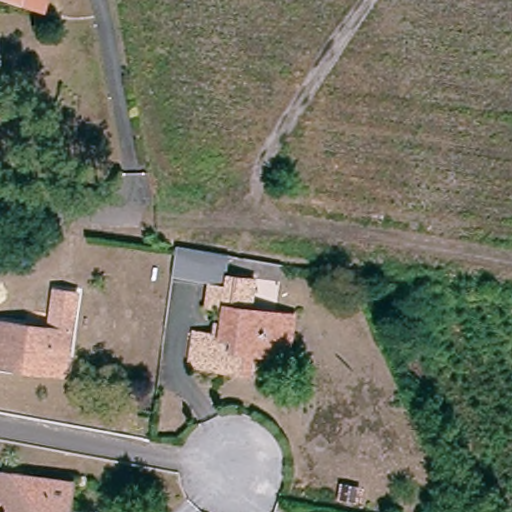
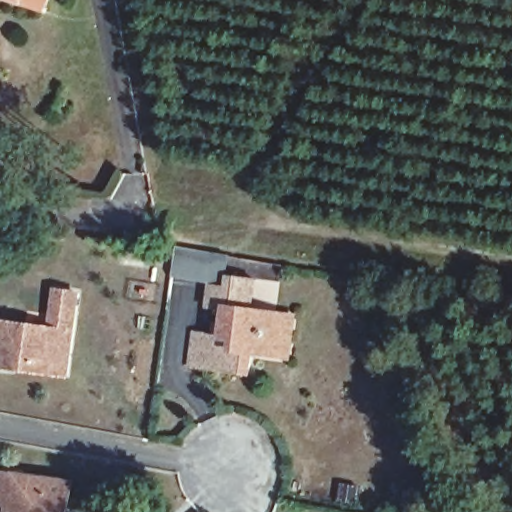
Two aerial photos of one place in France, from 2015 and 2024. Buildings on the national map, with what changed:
unchanged [(14,0),(47,0),(44,9),(14,0)]
unchanged [(286,364),(270,362),(237,357),(234,378),(196,373),(200,340),(221,343),(225,314),(206,312),(209,293),(226,295),(228,282),(247,284),(243,316),(276,320),(292,323),(286,364)]
unchanged [(0,372),(0,328),(50,334),(55,295),(77,298),(69,360),(66,380),(10,373),(0,372)]
unchanged [(18,497),(5,495),(8,474),(21,477),(77,484),(74,505),(73,512),(16,512),(18,497)]

